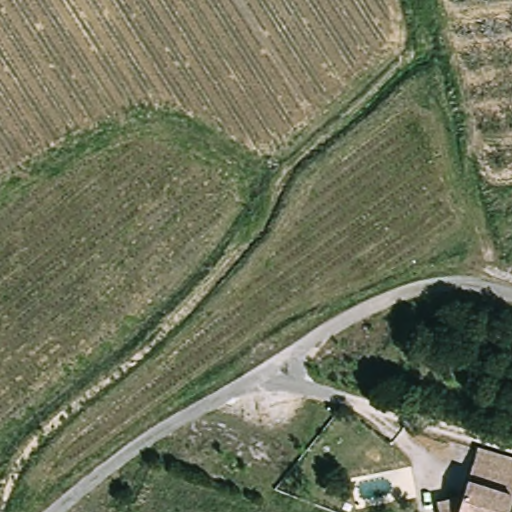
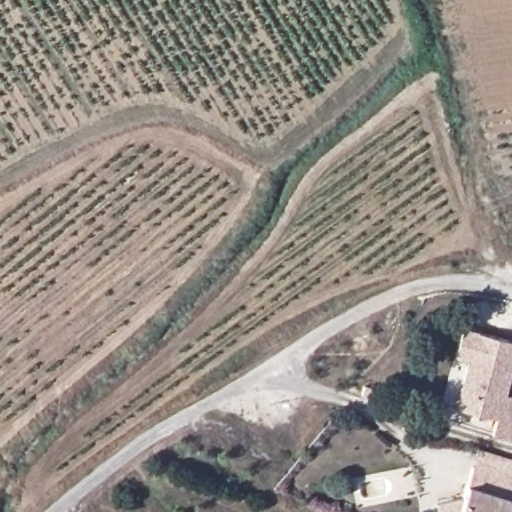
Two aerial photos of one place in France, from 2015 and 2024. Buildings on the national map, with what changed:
new [(512,439),(492,432),(496,419),(453,407),(468,360),(454,356),(462,327),(512,341),(512,370),(506,394),(512,396),(512,439)]
unchanged [(465,498),(478,449),(512,460),(512,511),(512,512),(440,512),(438,504),(465,498)]

